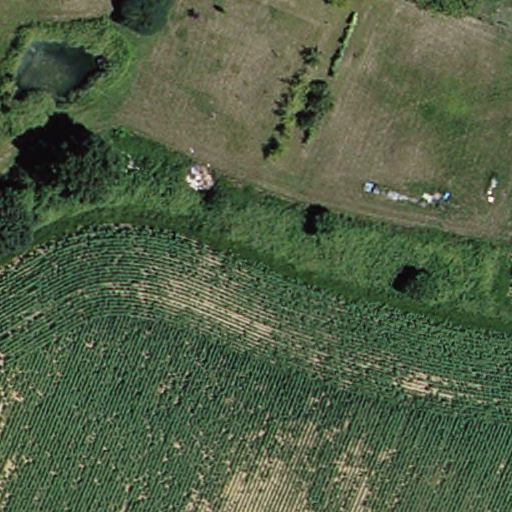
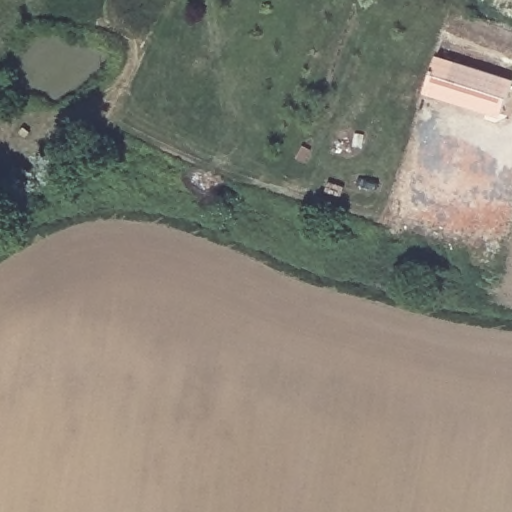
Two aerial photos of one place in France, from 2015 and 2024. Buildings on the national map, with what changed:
new [(435,56),(512,77),(502,111),(425,89),(435,56)]

